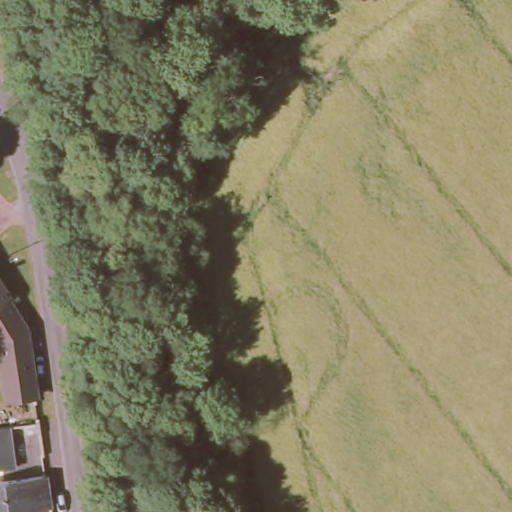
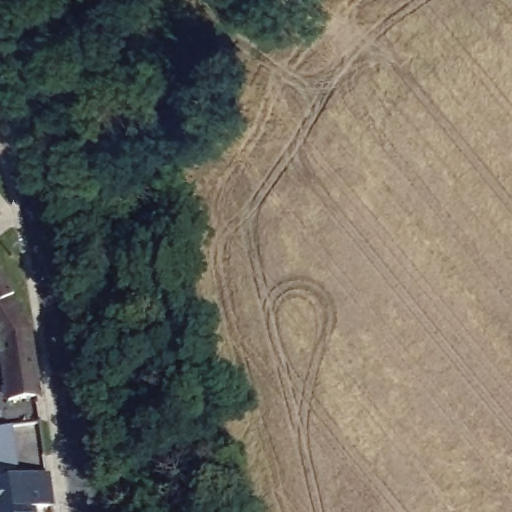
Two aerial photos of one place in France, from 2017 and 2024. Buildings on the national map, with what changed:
unchanged [(8,303),(23,330),(0,345),(0,280),(13,301),(8,303)]
unchanged [(10,407),(19,405),(17,392),(4,394),(0,366),(0,359),(26,355),(35,420),(13,423),(10,407)]
unchanged [(8,437),(11,467),(0,469),(0,425),(13,423),(35,420),(36,432),(8,437)]
unchanged [(47,474),(51,506),(30,508),(31,512),(0,512),(0,481),(47,474)]

